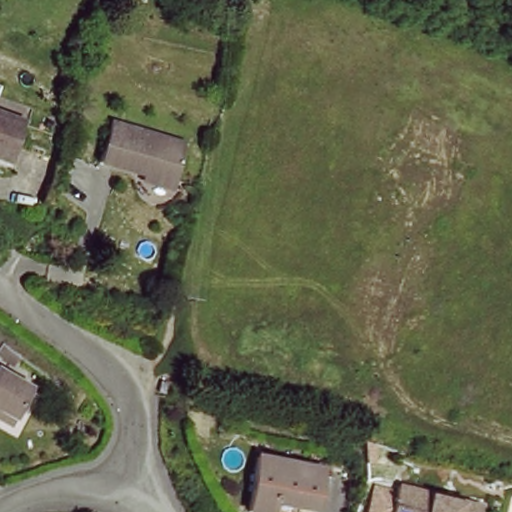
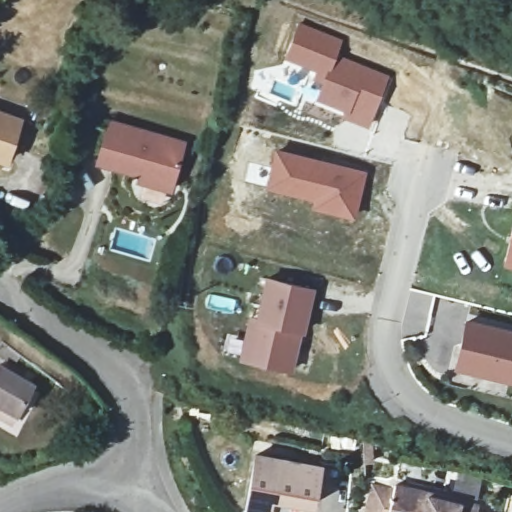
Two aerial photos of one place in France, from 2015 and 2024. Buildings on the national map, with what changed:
new [(300,24),(345,42),(338,54),(390,77),(370,129),(345,118),(346,112),(316,99),(323,84),(314,80),(316,72),(286,60),(300,24)]
unchanged [(7,161),(0,158),(0,112),(20,119),(7,161)]
unchanged [(182,148),(167,194),(137,184),(138,177),(95,162),(109,124),(182,148)]
new [(368,172),(355,220),(312,208),(313,202),(266,187),(275,149),(368,172)]
new [(512,228),(512,265),(503,262),(512,228)]
new [(302,334),(292,371),(241,358),(252,315),(257,317),(267,277),(315,288),(302,334)]
new [(456,368),(467,322),(467,320),(512,330),(512,382),(456,368)]
unchanged [(7,368),(41,386),(22,426),(0,415),(0,380),(7,368)]
unchanged [(271,512),(251,512),(245,511),(260,454),(322,468),(315,502),(297,498),(293,512),(284,512),(272,509),(271,512)]
unchanged [(480,507),(479,512),(394,512),(400,487),(480,507)]

